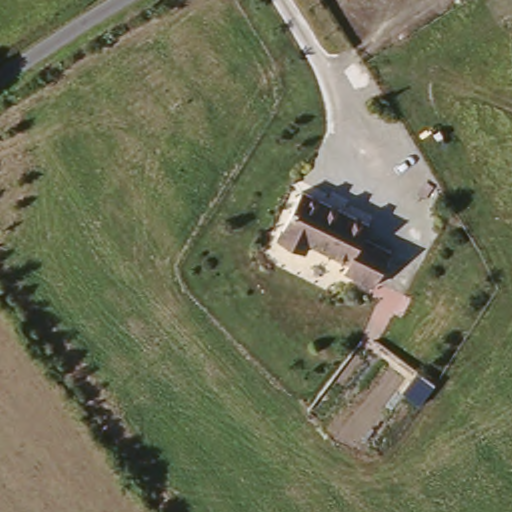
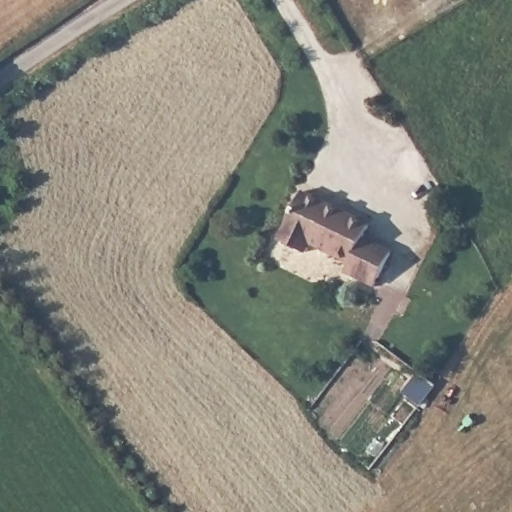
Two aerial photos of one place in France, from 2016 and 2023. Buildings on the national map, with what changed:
unchanged [(369,221),(363,235),(388,244),(370,282),(342,271),(346,260),(275,235),(300,192),(369,221)]

